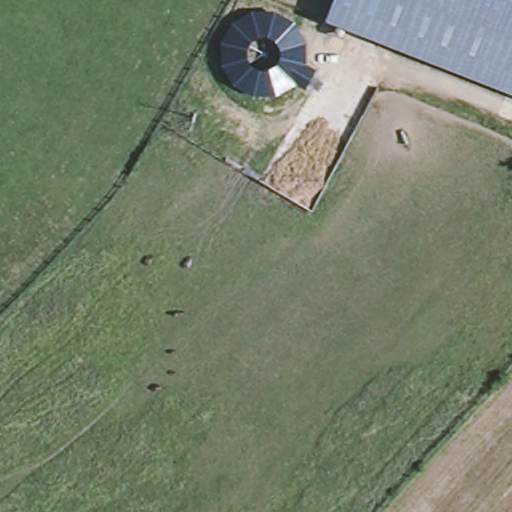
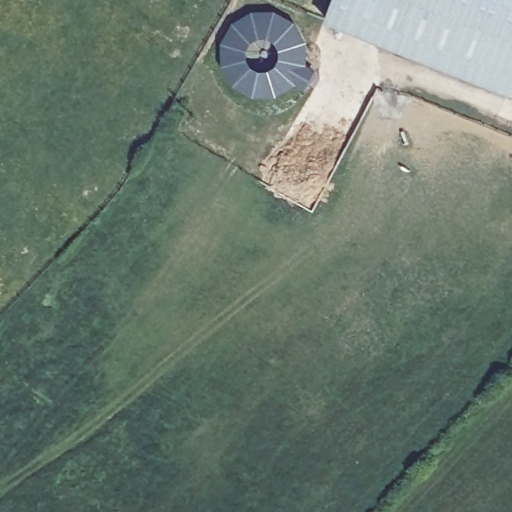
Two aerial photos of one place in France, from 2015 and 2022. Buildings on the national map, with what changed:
unchanged [(333,0),(512,0),(512,90),(327,15),(333,0)]

